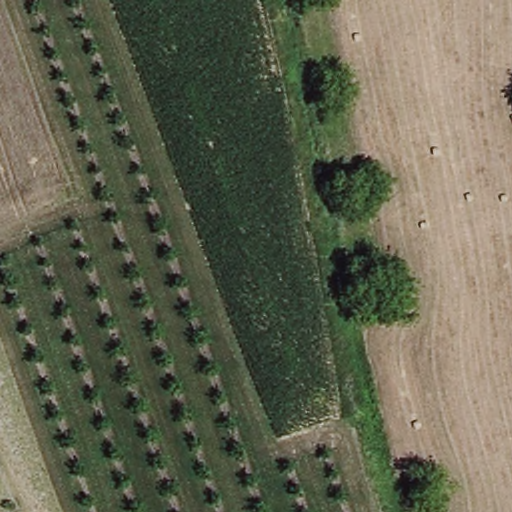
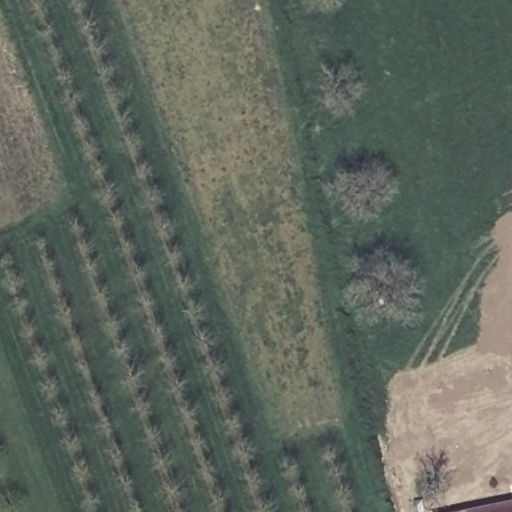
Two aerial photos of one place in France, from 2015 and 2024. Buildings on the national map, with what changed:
new [(512,500),(512,512),(463,512),(463,510),(512,500)]
new [(463,510),(463,512),(455,512),(463,510)]

